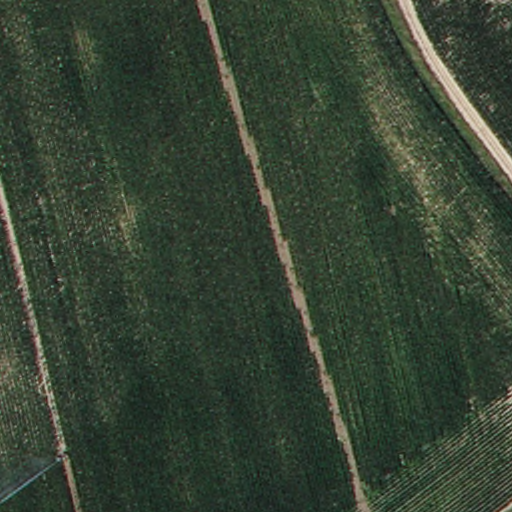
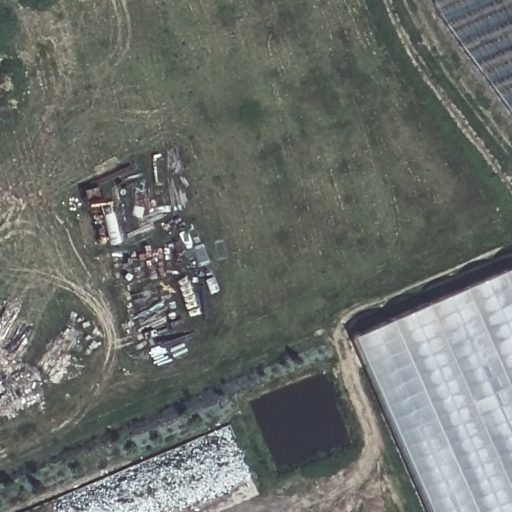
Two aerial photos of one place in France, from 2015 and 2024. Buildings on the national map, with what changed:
new [(429,0),(512,0),(512,119),(434,15),(429,0)]
new [(512,512),(426,512),(349,339),(512,268),(512,512)]

